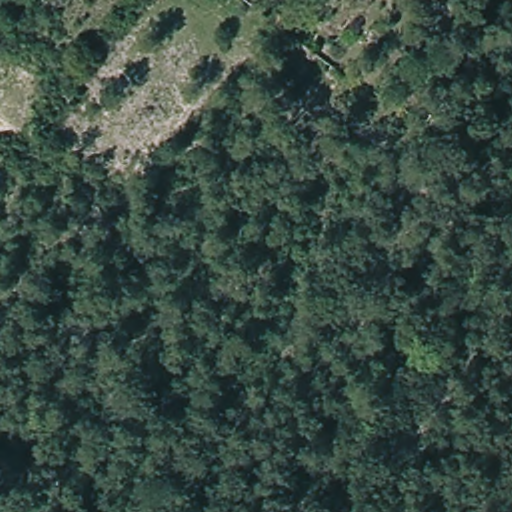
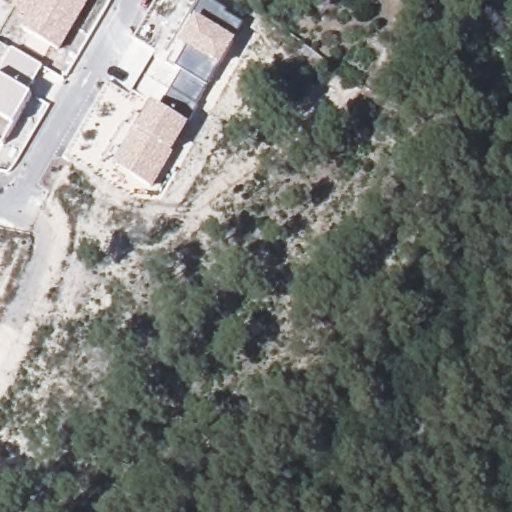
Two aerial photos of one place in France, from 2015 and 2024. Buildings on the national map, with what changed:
new [(61,50),(23,29),(29,17),(13,7),(17,0),(91,0),(61,50)]
new [(165,108),(185,74),(179,70),(191,51),(181,45),(197,19),(193,17),(204,0),(206,0),(230,13),(228,15),(246,25),(238,41),(223,68),(211,89),(191,125),(174,152),(176,153),(153,189),(116,165),(137,130),(153,103),(165,108)]
new [(44,66),(30,93),(34,95),(16,125),(6,145),(0,142),(0,76),(2,77),(14,49),(44,66)]

